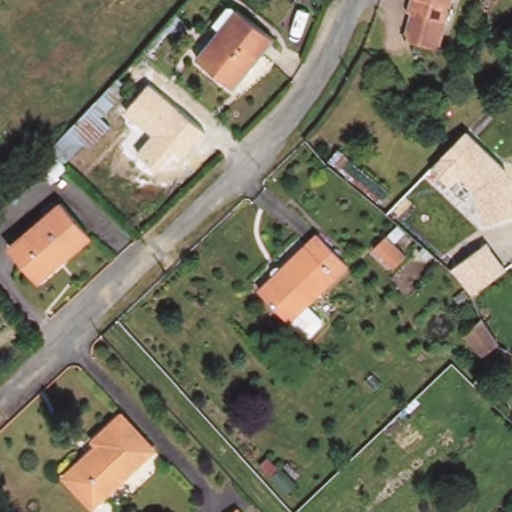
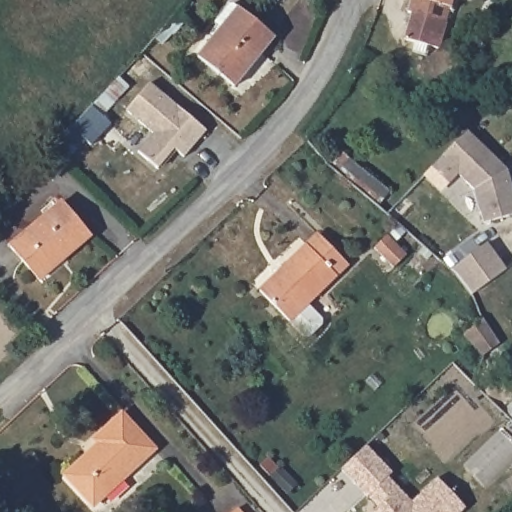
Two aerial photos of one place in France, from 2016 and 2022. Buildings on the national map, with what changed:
unchanged [(412,51),(414,42),(404,39),(411,13),(407,12),(410,0),(451,0),(448,11),(438,49),(429,46),(427,55),(412,51)]
unchanged [(232,5),(236,8),(237,7),(274,37),(234,87),(197,57),(220,29),(214,24),(230,5),(232,5)]
unchanged [(128,88),(115,103),(104,93),(111,85),(118,78),(128,88)]
unchanged [(205,131),(184,157),(173,148),(156,166),(138,149),(151,135),(126,111),(150,82),(205,131)]
unchanged [(59,140),(70,128),(91,106),(111,125),(90,146),(85,141),(74,153),(59,140)]
unchanged [(510,173),(512,185),(512,216),(482,222),(471,188),(458,176),(449,184),(431,167),(468,130),(510,173)]
unchanged [(390,191),(381,203),(329,160),(338,148),(390,191)]
unchanged [(91,237),(65,259),(62,256),(36,278),(9,246),(61,202),(91,237)]
unchanged [(393,268),(374,248),(387,235),(397,224),(405,232),(394,243),(406,256),(393,268)]
unchanged [(317,232),(348,265),(308,305),(322,318),(322,324),(309,337),(303,337),(258,290),(317,232)]
unchanged [(505,269),(471,295),(451,269),(488,241),(505,269)]
unchanged [(482,318),(498,344),(482,356),(463,334),(480,319),(482,318)]
unchanged [(93,505),(66,475),(89,453),(91,455),(101,446),(95,439),(121,415),(154,449),(93,505)]
new [(391,473),(387,477),(411,502),(436,478),(465,508),(460,512),(372,512),(377,507),(341,469),(365,446),(391,473)]
unchanged [(241,512),(233,512),(237,508),(241,512)]

